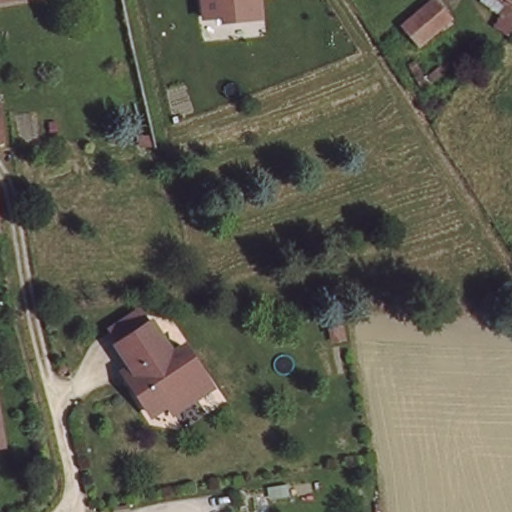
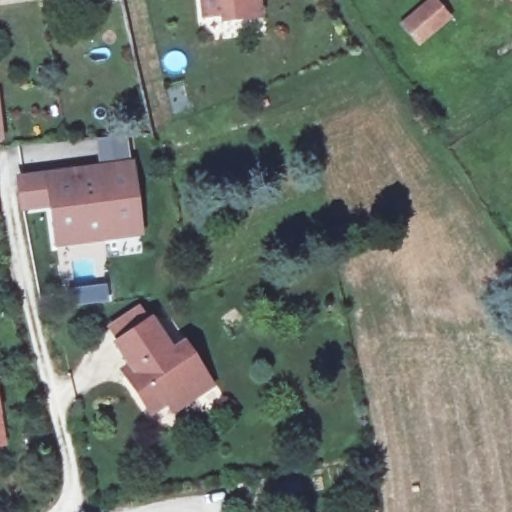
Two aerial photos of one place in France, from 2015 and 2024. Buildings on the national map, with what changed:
unchanged [(259,18),(219,23),(219,16),(203,17),(202,0),(259,0),(259,18)]
unchanged [(449,16),(419,42),(402,24),(430,0),(435,0),(449,16)]
unchanged [(512,6),(503,0),(512,0),(512,6)]
unchanged [(6,142),(0,143),(0,104),(6,142)]
new [(107,242),(61,248),(56,208),(26,212),(23,192),(24,189),(26,187),(82,179),(83,184),(136,177),(141,218),(143,236),(107,242)]
unchanged [(211,387),(204,392),(186,404),(172,400),(156,411),(141,390),(128,370),(136,364),(121,342),(156,320),(176,352),(189,344),(209,374),(216,384),(211,387)]
unchanged [(0,438),(0,419),(1,424),(3,437),(0,438)]

